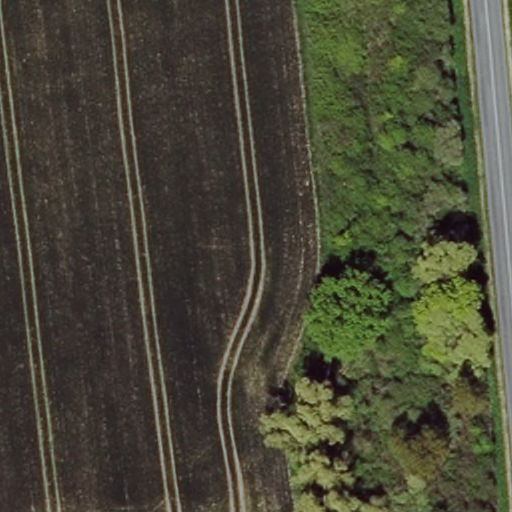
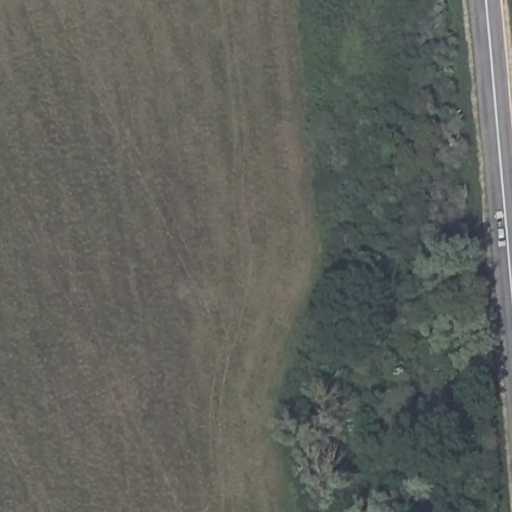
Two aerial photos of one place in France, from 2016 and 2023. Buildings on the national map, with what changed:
[]

